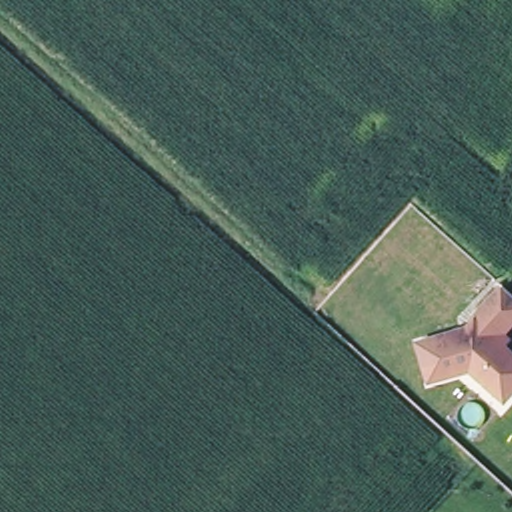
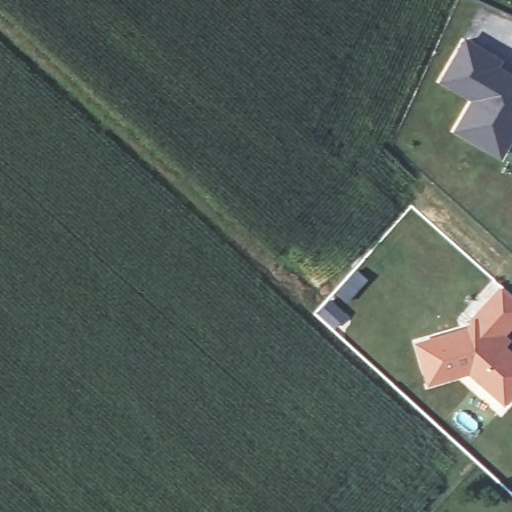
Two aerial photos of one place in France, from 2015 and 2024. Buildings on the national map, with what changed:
new [(478,140),(456,127),(474,96),(455,85),(442,77),(465,38),(498,56),(494,64),(512,74),(512,132),(509,137),(500,152),(478,140)]
unchanged [(512,350),(512,393),(511,393),(490,373),(484,379),(473,368),(430,377),(420,338),(475,326),(480,319),(478,317),(510,285),(512,287),(512,328),(501,339),(512,350)]

